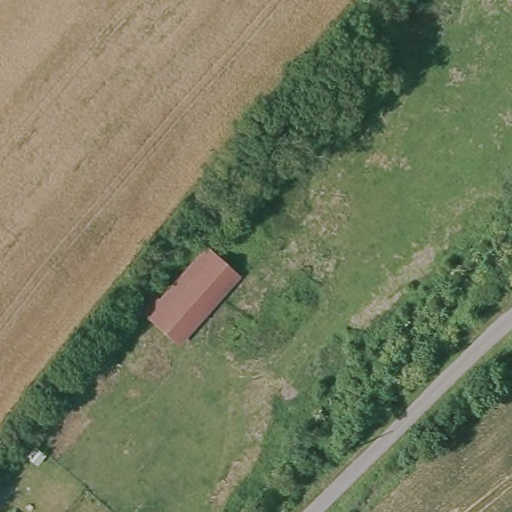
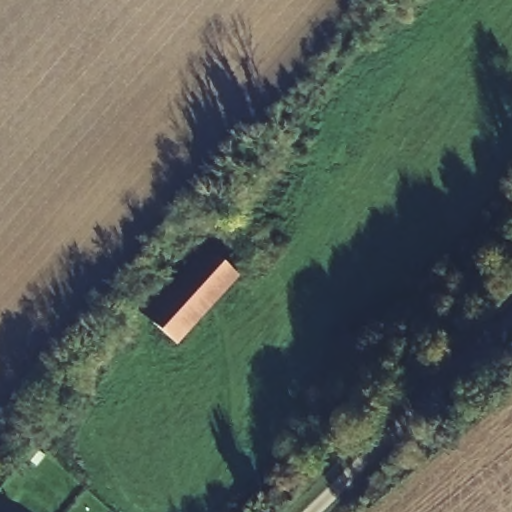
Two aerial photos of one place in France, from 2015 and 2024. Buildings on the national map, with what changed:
unchanged [(142,314),(206,245),(241,276),(177,344),(142,314)]

